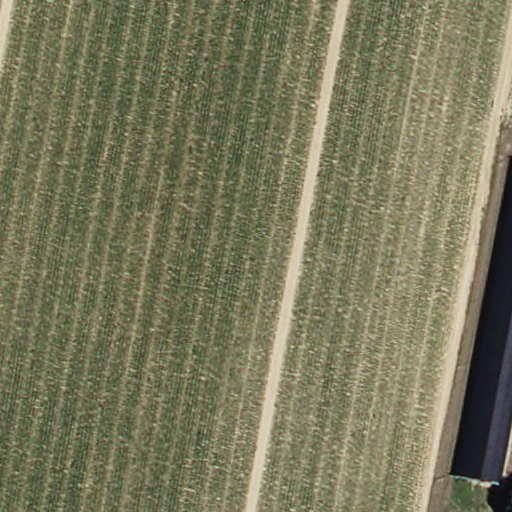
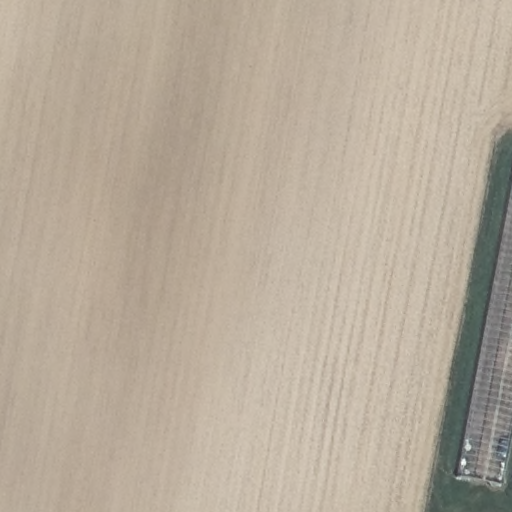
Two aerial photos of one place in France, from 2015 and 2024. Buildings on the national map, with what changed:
unchanged [(455,477),(512,167),(512,461),(507,488),(455,477)]

